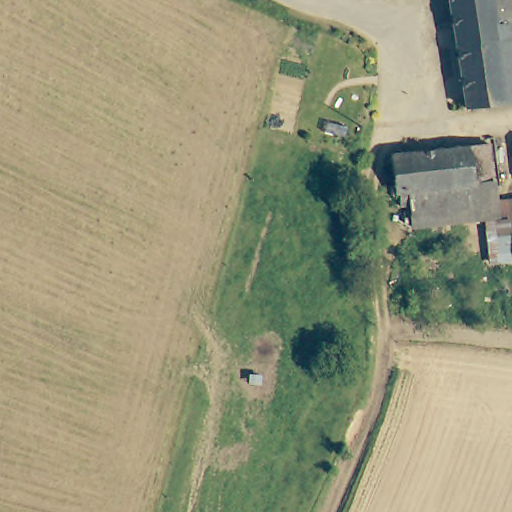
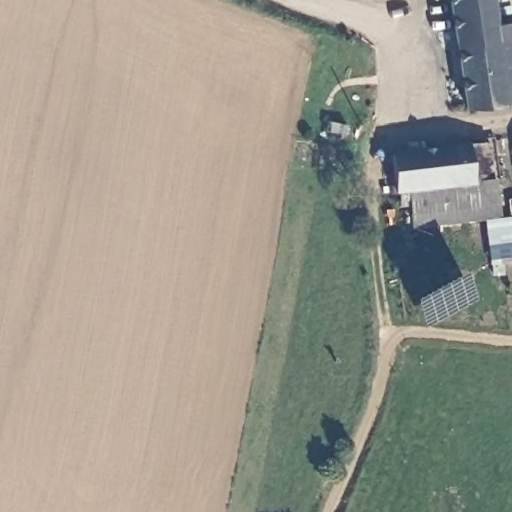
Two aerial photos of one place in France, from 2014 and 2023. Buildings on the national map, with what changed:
unchanged [(498,22),(510,21),(512,34),(512,102),(467,109),(450,0),(495,0),(498,22)]
unchanged [(496,216),(490,217),(452,221),(411,225),(409,204),(400,205),(399,191),(395,192),(391,154),(489,144),(495,201),(496,216)]
unchanged [(512,200),(512,261),(495,262),(490,217),(496,216),(495,201),(512,200)]

